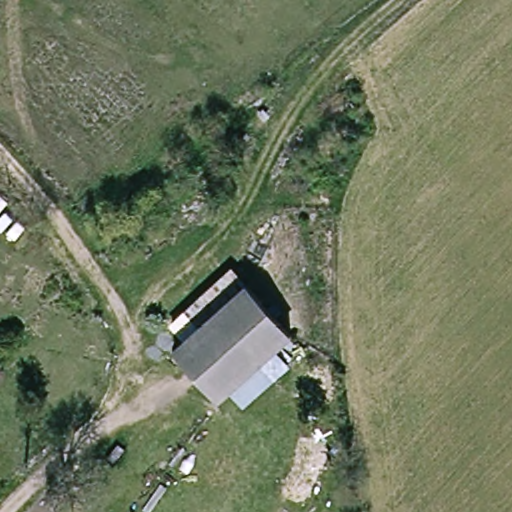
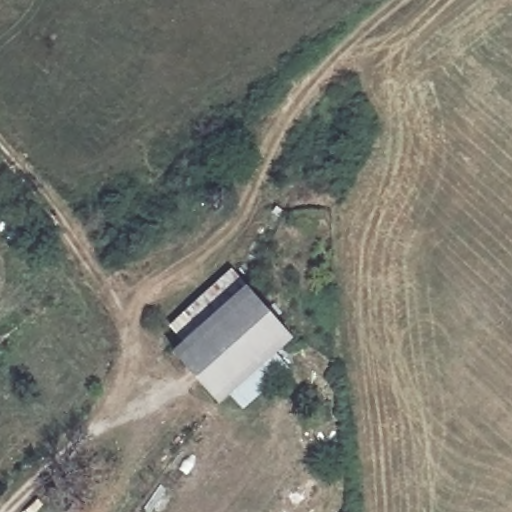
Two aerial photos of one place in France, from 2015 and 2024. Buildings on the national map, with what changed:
unchanged [(168,353),(241,286),(285,335),(214,401),(168,353)]

